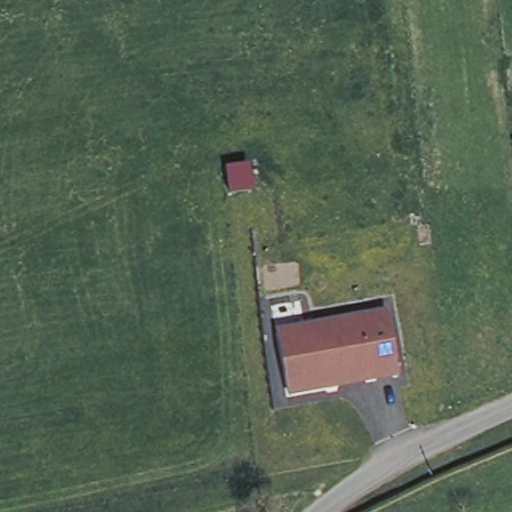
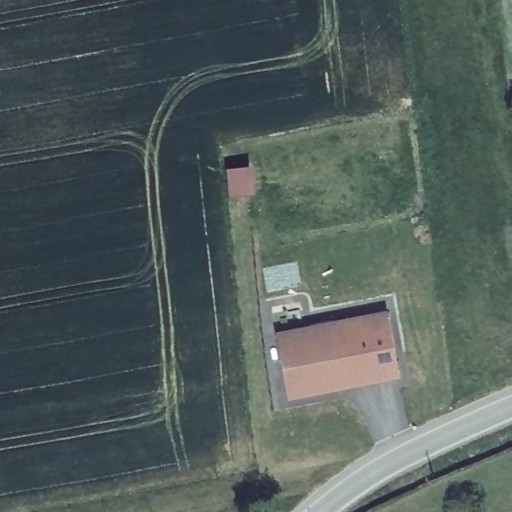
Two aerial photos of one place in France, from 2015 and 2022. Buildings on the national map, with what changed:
unchanged [(358,318),(359,324),(387,319),(398,374),(369,380),(368,375),(327,383),(328,388),(290,396),(277,333),(358,318)]

